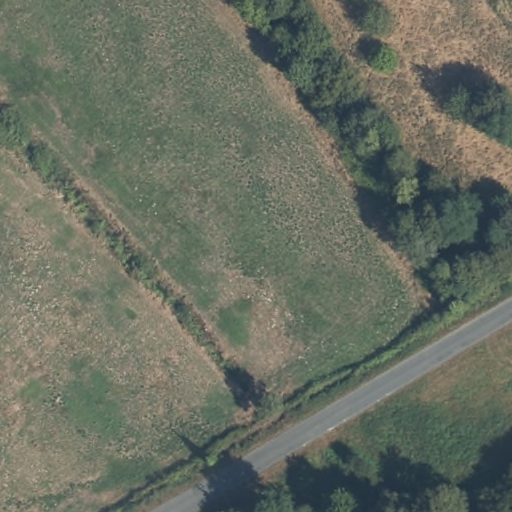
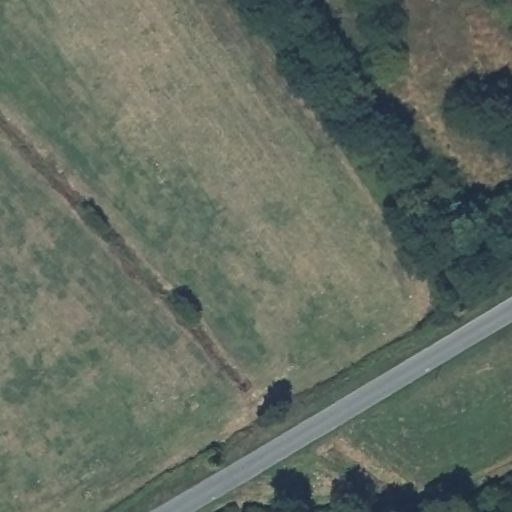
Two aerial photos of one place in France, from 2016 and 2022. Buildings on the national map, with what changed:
[]

